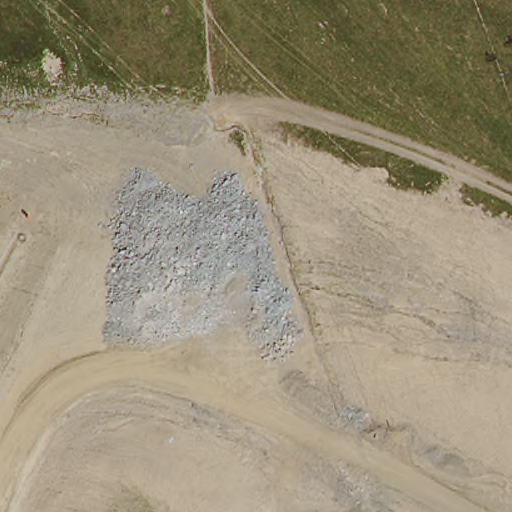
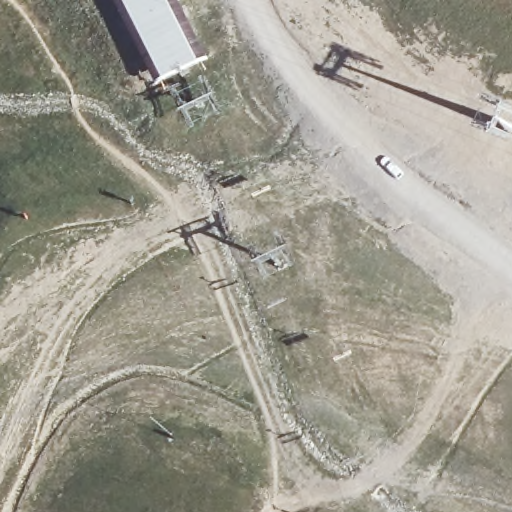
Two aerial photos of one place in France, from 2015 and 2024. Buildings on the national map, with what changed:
new [(184,74),(159,87),(116,0),(179,0),(210,60),(184,74)]

